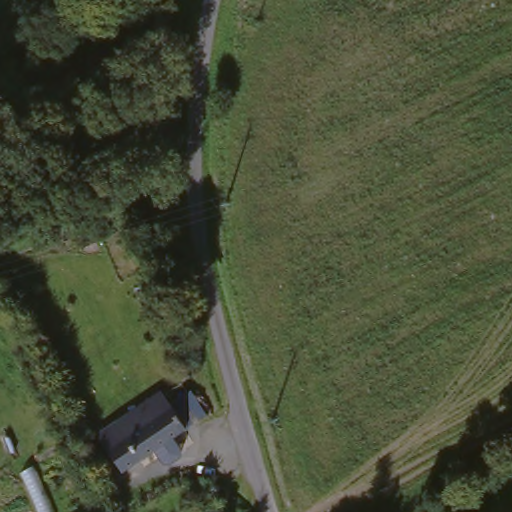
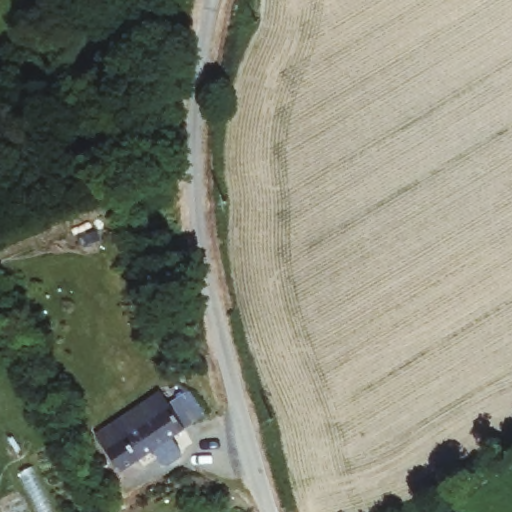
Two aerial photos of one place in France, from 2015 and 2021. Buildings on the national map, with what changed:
unchanged [(159,398),(168,413),(189,399),(204,423),(174,442),(136,465),(117,477),(93,439),(159,398)]

